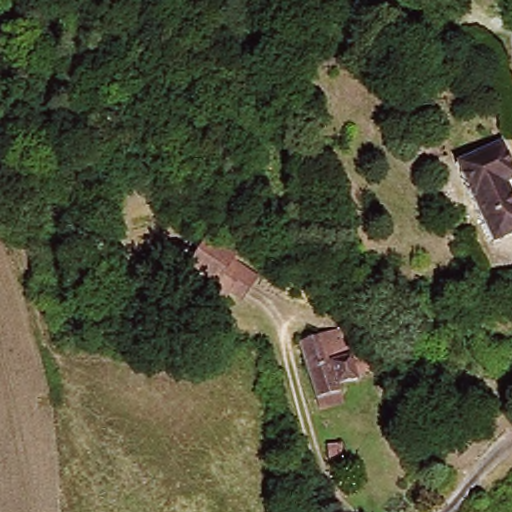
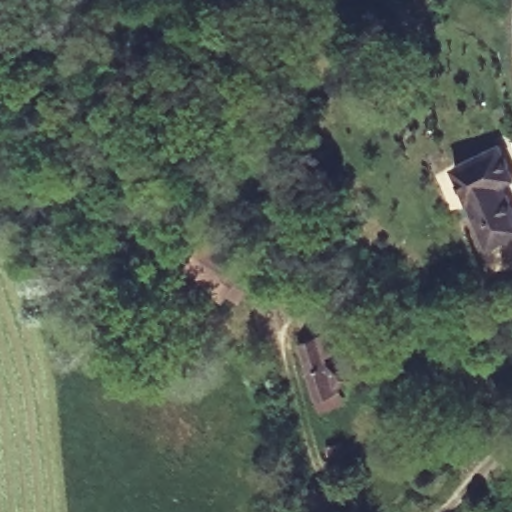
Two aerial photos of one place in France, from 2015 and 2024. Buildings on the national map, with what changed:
unchanged [(453,165),(499,144),(512,172),(512,229),(487,241),(453,165)]
unchanged [(206,288),(213,281),(198,262),(220,246),(253,287),(231,306),(223,296),(217,300),(206,288)]
unchanged [(378,343),(384,361),(334,377),(337,390),(316,396),(297,342),(339,328),(346,353),(378,343)]

